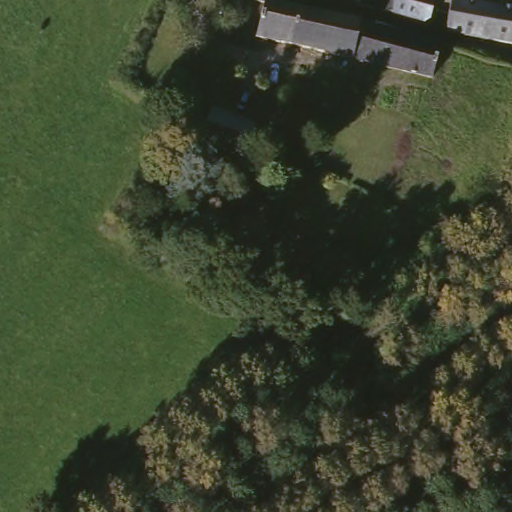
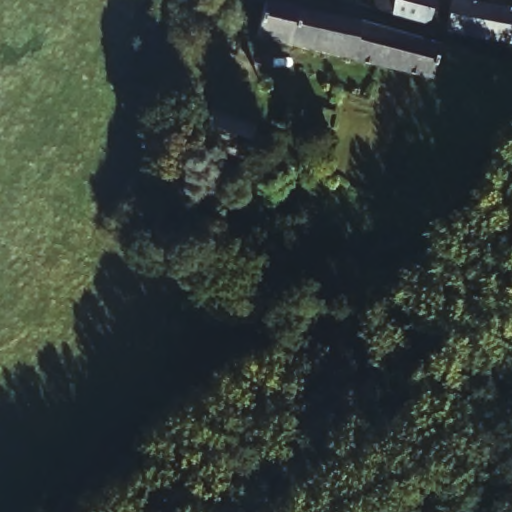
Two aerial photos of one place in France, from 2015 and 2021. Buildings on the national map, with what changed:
unchanged [(385,10),(386,0),(441,0),(438,19),(401,13),(385,10)]
unchanged [(465,0),(490,0),(512,4),(512,39),(460,29),(465,0)]
unchanged [(355,20),(436,42),(430,76),(412,73),(373,64),(254,38),(260,3),(355,20)]
unchanged [(203,125),(210,106),(215,108),(259,127),(247,156),(198,136),(203,125)]

